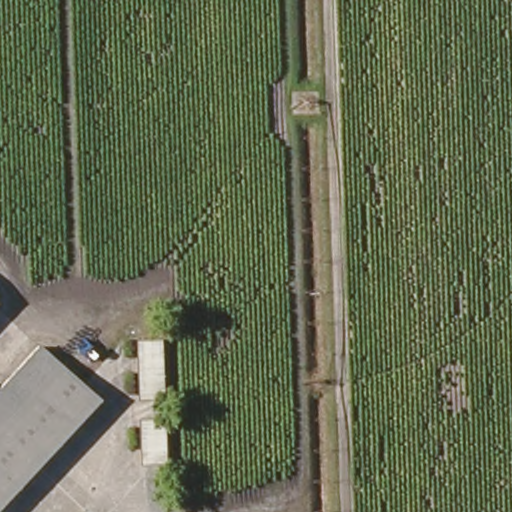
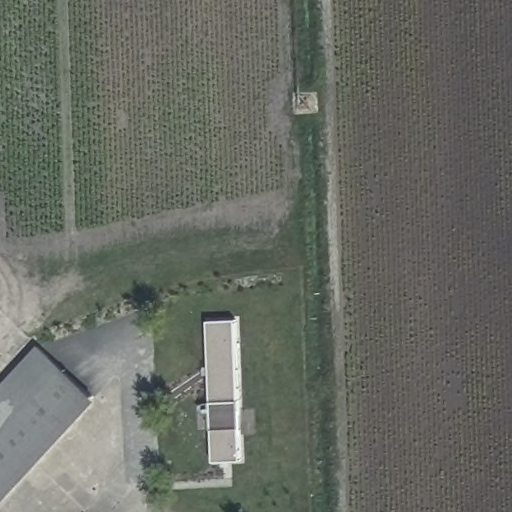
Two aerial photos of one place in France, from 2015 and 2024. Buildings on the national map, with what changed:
new [(237,319),(240,461),(213,462),(209,320),(237,319)]
unchanged [(0,508),(0,389),(41,342),(101,402),(0,508)]
demolished [(246,384),(258,384),(261,434),(249,436),(246,384)]
demolished [(253,494),(250,459),(264,458),(267,494),(253,494)]

